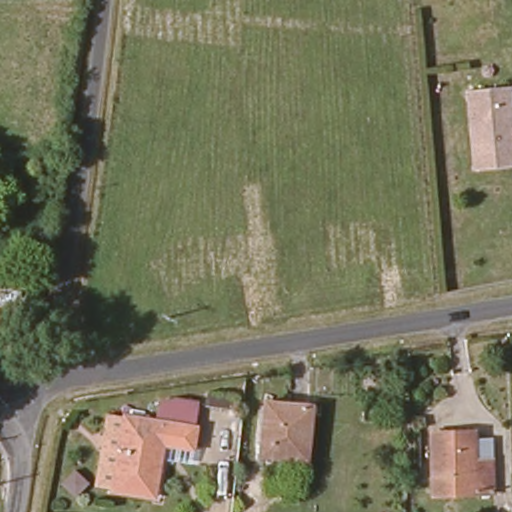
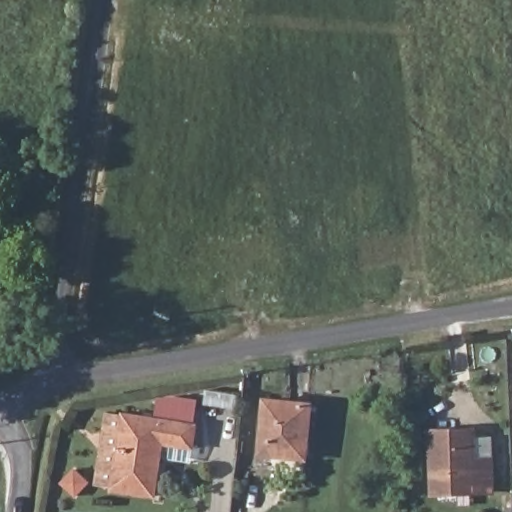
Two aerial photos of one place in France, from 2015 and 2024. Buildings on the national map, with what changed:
demolished [(510,161),(475,162),(470,86),(498,82),(503,82),(512,81),(512,161),(510,161)]
unchanged [(194,446),(164,441),(159,493),(99,485),(109,412),(159,416),(161,401),(177,394),(200,397),(194,446)]
unchanged [(310,464),(263,458),(269,403),(316,407),(310,464)]
unchanged [(472,457),(491,457),(491,493),(431,493),(431,433),(472,432),(472,457)]

